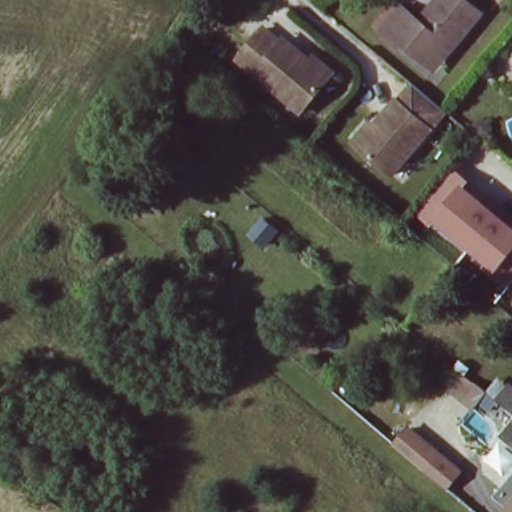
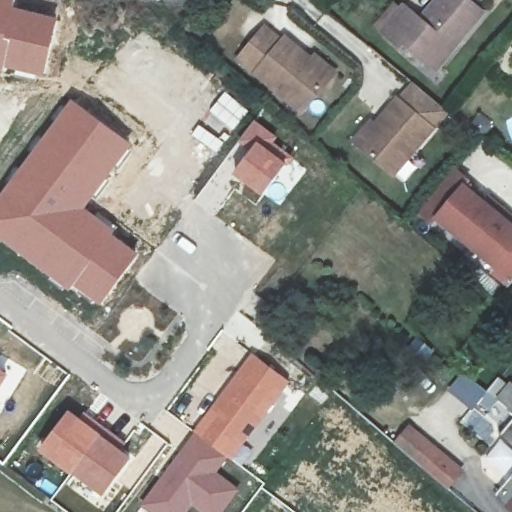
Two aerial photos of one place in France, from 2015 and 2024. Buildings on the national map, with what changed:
new [(15,7),(58,17),(44,78),(5,71),(4,75),(0,74),(0,0),(16,0),(15,7)]
unchanged [(431,56),(405,35),(397,44),(378,28),(400,1),(418,16),(431,0),(473,0),(482,7),(458,36),(437,61),(431,56)]
unchanged [(240,60),(266,30),(281,43),(285,39),(307,58),(312,54),(337,75),(333,79),(305,114),(240,60)]
unchanged [(367,122),(373,126),(395,99),(399,102),(416,82),(419,85),(439,101),(447,108),(447,109),(393,173),(358,143),(353,139),(367,122)]
new [(225,90),(249,110),(232,130),(208,110),(225,90)]
new [(70,97),(133,144),(85,206),(116,229),(113,232),(139,252),(100,306),(73,287),(69,292),(0,240),(0,192),(70,97)]
new [(248,151),(237,143),(255,119),(278,137),(275,142),(293,156),(263,194),(232,171),(248,151)]
unchanged [(468,183),(485,200),(491,194),(512,212),(512,280),(508,285),(492,272),(496,268),(439,218),(433,223),(419,211),(453,167),(471,179),(468,183)]
new [(210,404),(251,351),(291,381),(234,461),(228,457),(192,430),(210,404)]
new [(10,372),(0,387),(0,366),(10,372)]
unchanged [(461,400),(477,382),(490,394),(476,411),(461,400)]
new [(69,407),(133,455),(103,497),(37,448),(69,407)]
unchanged [(497,424),(509,410),(512,413),(512,437),(497,424)]
unchanged [(393,445),(418,420),(476,470),(456,504),(393,445)]
new [(228,457),(217,471),(240,488),(223,512),(199,512),(192,507),(188,512),(149,512),(139,504),(192,430),(228,457)]
unchanged [(512,482),(512,512),(510,512),(496,500),(512,482)]

